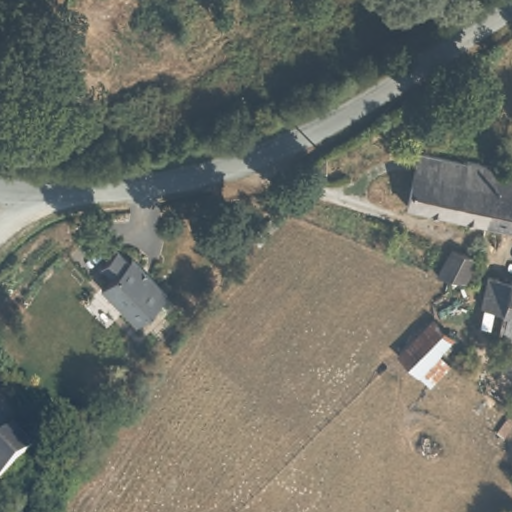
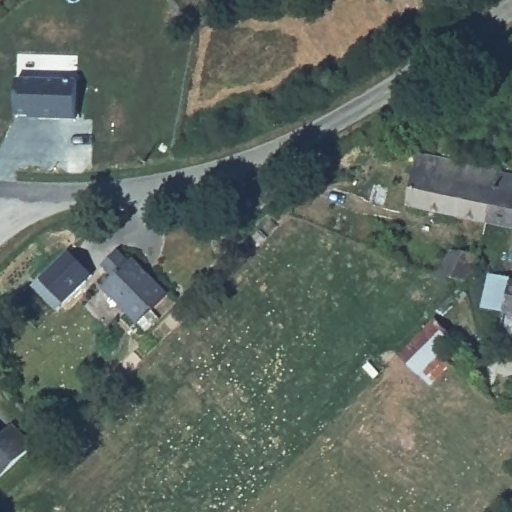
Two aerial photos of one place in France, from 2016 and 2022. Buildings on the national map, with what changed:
new [(75,119),(29,118),(29,116),(14,116),(15,79),(76,79),(75,119)]
unchanged [(497,173),(487,222),(404,205),(413,154),(468,163),(469,158),(498,163),(497,173)]
unchanged [(512,175),(512,227),(487,222),(497,173),(512,175)]
unchanged [(101,284),(113,274),(101,262),(117,247),(128,259),(131,255),(167,292),(136,321),(101,284)]
unchanged [(456,247),(481,251),(476,272),(464,284),(440,278),(456,247)]
new [(55,311),(31,287),(39,278),(66,249),(94,276),(55,311)]
unchanged [(497,334),(502,308),(477,302),(485,269),(512,275),(512,338),(497,334)]
unchanged [(454,339),(422,380),(401,363),(434,323),(454,339)]
unchanged [(15,421),(36,443),(0,476),(0,475),(0,432),(1,434),(15,421)]

